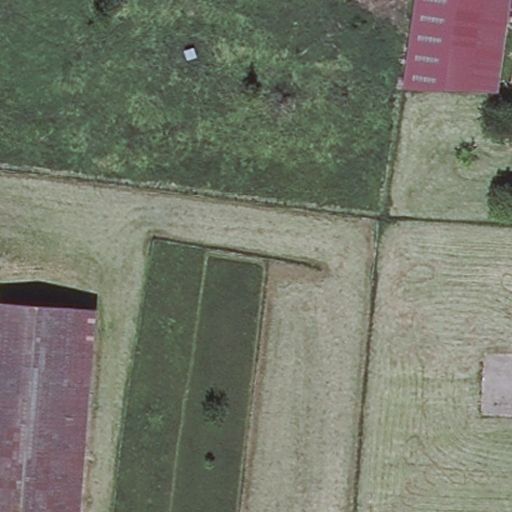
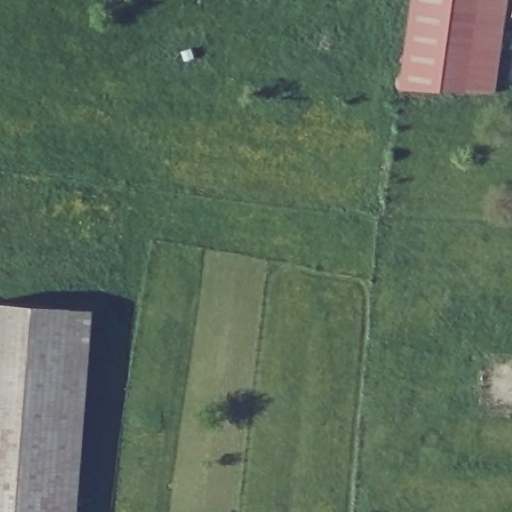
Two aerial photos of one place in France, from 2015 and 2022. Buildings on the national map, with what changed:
unchanged [(403,88),(416,0),(478,0),(465,90),(403,88)]
unchanged [(465,90),(478,0),(507,0),(493,91),(465,90)]
unchanged [(73,307),(57,512),(0,512),(0,302),(73,307)]

